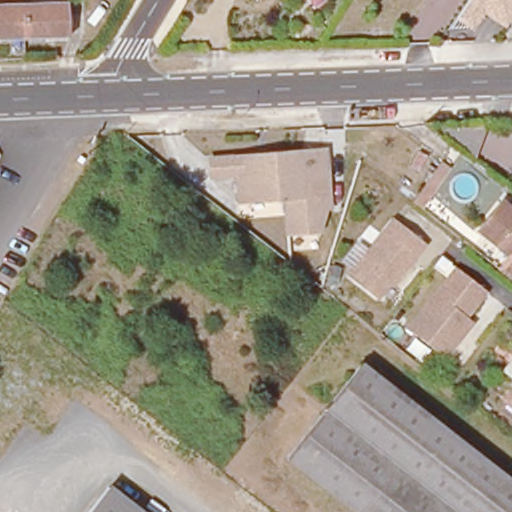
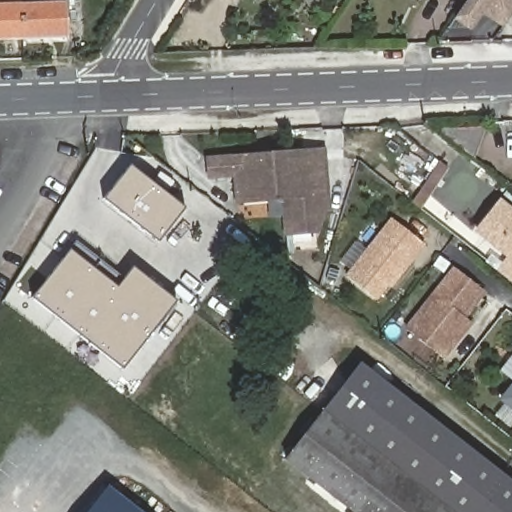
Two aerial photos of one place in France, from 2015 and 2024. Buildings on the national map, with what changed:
unchanged [(0,0),(22,0),(22,3),(23,40),(0,40),(0,0)]
unchanged [(456,19),(469,0),(512,0),(512,14),(502,27),(482,14),(471,30),(456,19)]
unchanged [(22,3),(66,1),(67,39),(23,40),(22,3)]
unchanged [(323,151),(327,194),(281,198),(238,201),(234,159),(323,151)]
new [(440,162),(448,168),(421,208),(412,202),(440,162)]
new [(184,208),(158,242),(104,200),(130,166),(184,208)]
unchanged [(327,194),(331,210),(327,211),(321,233),(286,235),(281,198),(327,194)]
unchanged [(482,237),(505,208),(512,213),(512,260),(482,237)]
unchanged [(392,220),(423,244),(395,280),(392,278),(375,299),(347,277),(392,220)]
new [(123,279),(133,268),(176,302),(122,369),(32,298),(76,242),(123,279)]
unchanged [(511,276),(510,267),(512,265),(512,276),(511,276)]
unchanged [(460,335),(442,359),(406,330),(455,269),(483,292),(461,319),(468,324),(460,335)]
unchanged [(332,273),(329,281),(321,279),(323,270),(332,273)]
unchanged [(500,370),(512,355),(512,380),(500,370)]
unchanged [(286,459),(360,364),(512,483),(512,512),(354,512),(286,459)]
unchanged [(501,400),(512,387),(512,408),(501,400)]
unchanged [(108,487),(140,512),(88,512),(108,487)]

